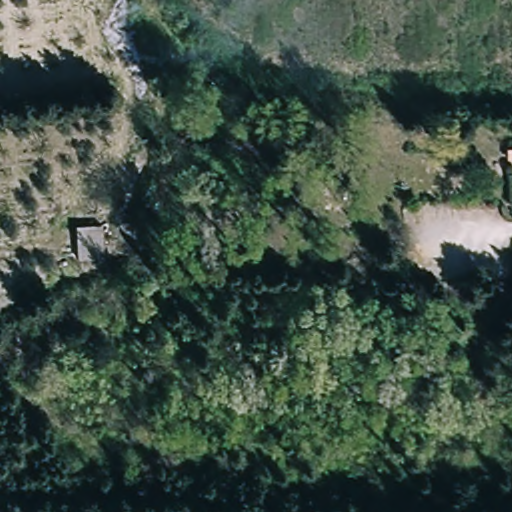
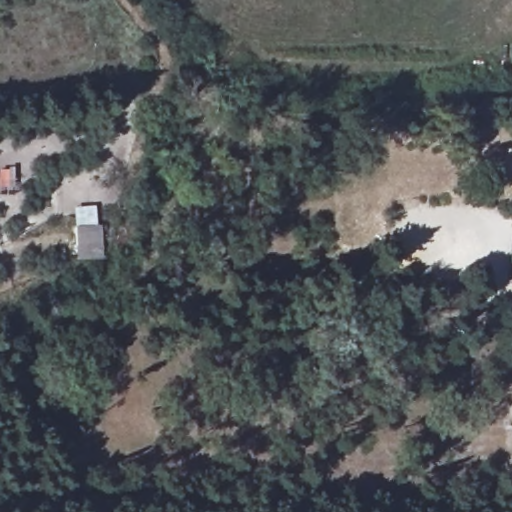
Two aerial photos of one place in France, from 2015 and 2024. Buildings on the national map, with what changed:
unchanged [(76,266),(78,233),(103,232),(100,267),(76,266)]

